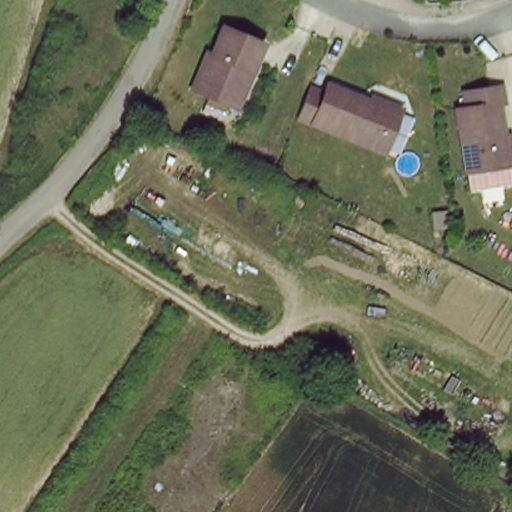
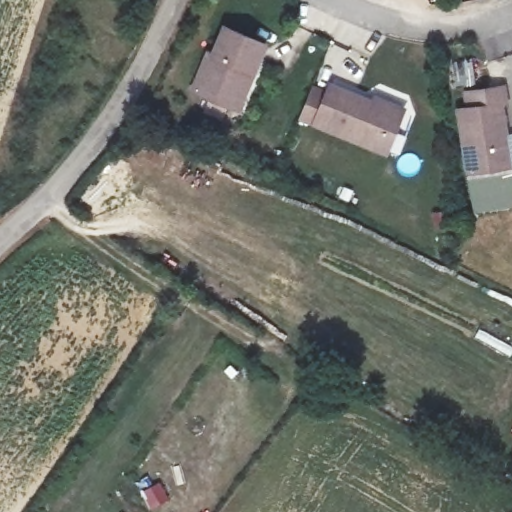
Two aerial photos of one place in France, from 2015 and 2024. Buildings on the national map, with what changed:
unchanged [(229,102),(193,87),(209,50),(214,52),(226,26),(266,43),(254,71),(238,107),(229,102)]
unchanged [(476,172),(462,117),(472,114),(469,99),(505,90),(509,106),(504,107),(510,132),(512,132),(512,163),(476,172)]
unchanged [(408,117),(390,160),(383,157),(304,122),(316,94),(331,100),(335,91),(377,109),(379,104),(408,117)]

